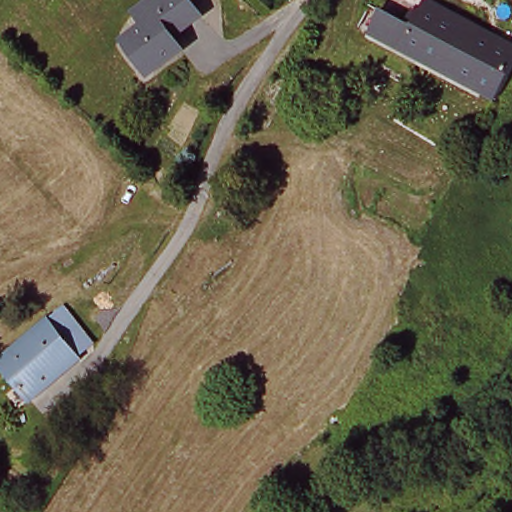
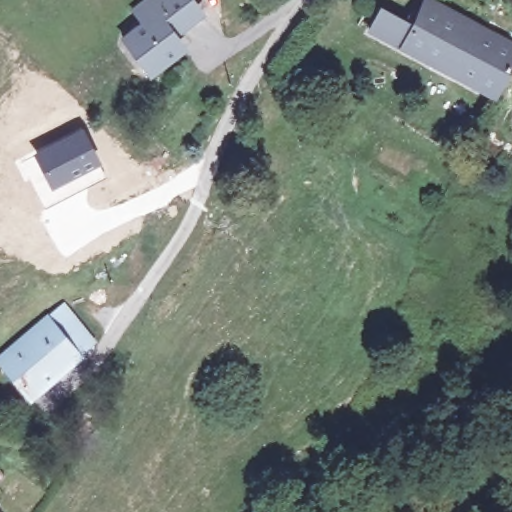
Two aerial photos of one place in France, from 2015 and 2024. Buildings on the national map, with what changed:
unchanged [(140,32),(152,23),(144,9),(159,0),(198,0),(210,19),(185,36),(192,50),(163,69),(155,74),(132,38),(140,32)]
unchanged [(510,69),(495,94),(381,30),(393,8),(413,18),(419,9),(427,12),(435,0),(512,40),(512,70),(510,69)]
new [(83,126),(100,164),(52,188),(34,152),(83,126)]
unchanged [(81,342),(68,353),(72,358),(25,398),(0,367),(0,354),(55,309),(81,342)]

